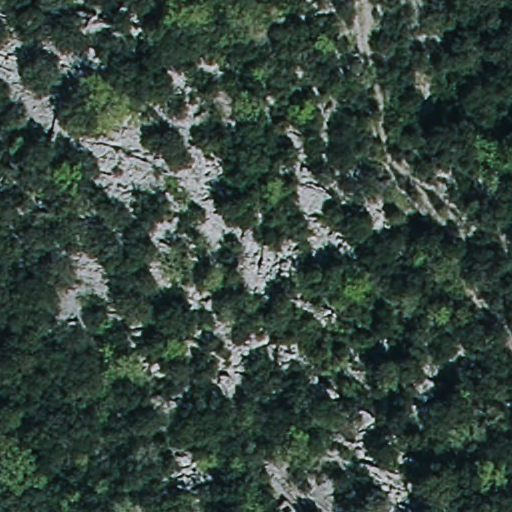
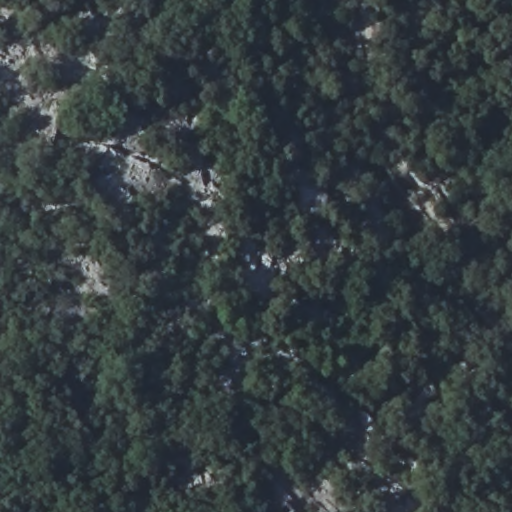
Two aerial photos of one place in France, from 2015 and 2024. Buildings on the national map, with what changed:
unchanged [(295,512),(279,512),(289,505),(295,512)]

